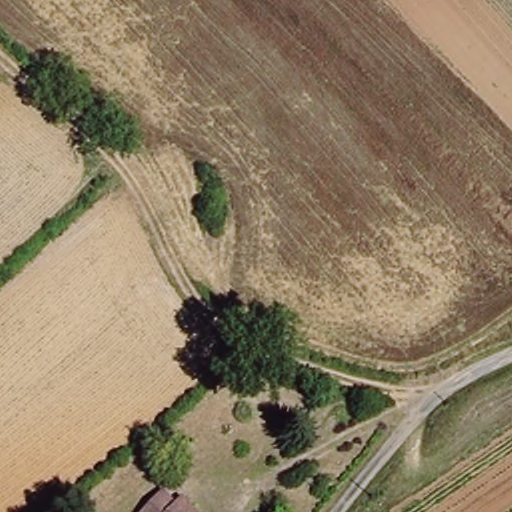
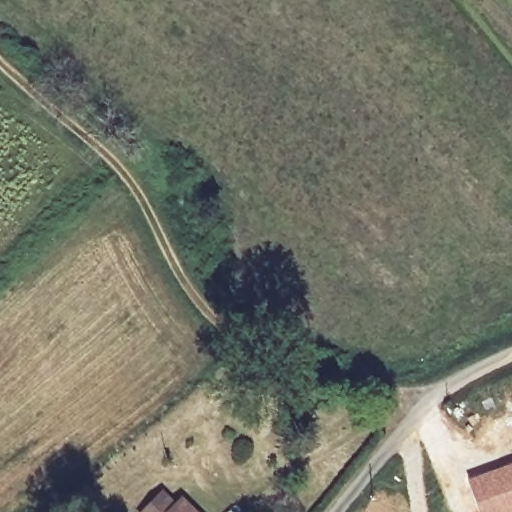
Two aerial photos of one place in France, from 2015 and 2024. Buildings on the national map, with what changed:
new [(512,462),(512,512),(478,512),(466,479),(512,462)]
unchanged [(164,492),(176,506),(185,497),(198,512),(145,512),(164,492)]

